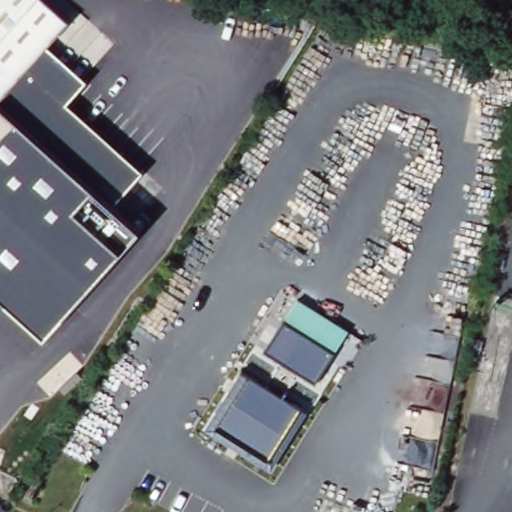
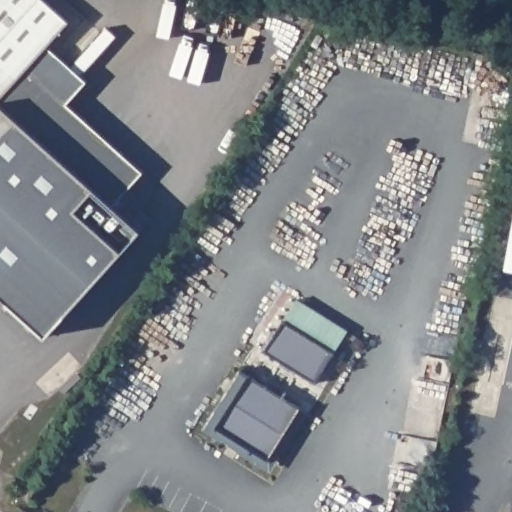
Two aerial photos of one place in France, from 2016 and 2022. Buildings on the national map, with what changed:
unchanged [(70,21),(0,99),(0,0),(46,0),(70,21)]
unchanged [(46,47),(85,81),(67,104),(142,173),(112,207),(140,230),(45,338),(0,297),(0,98),(46,47)]
unchanged [(283,314),(335,347),(316,378),(264,345),(283,314)]
unchanged [(249,368),(215,421),(268,454),(301,401),(309,406),(271,466),(204,424),(241,364),(249,368)]
unchanged [(301,401),(268,454),(215,421),(249,368),(301,401)]

